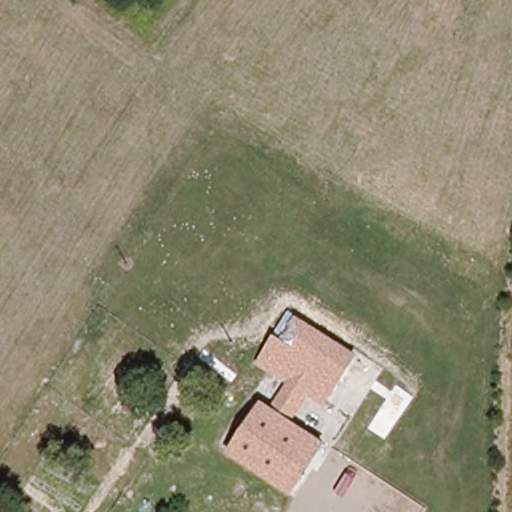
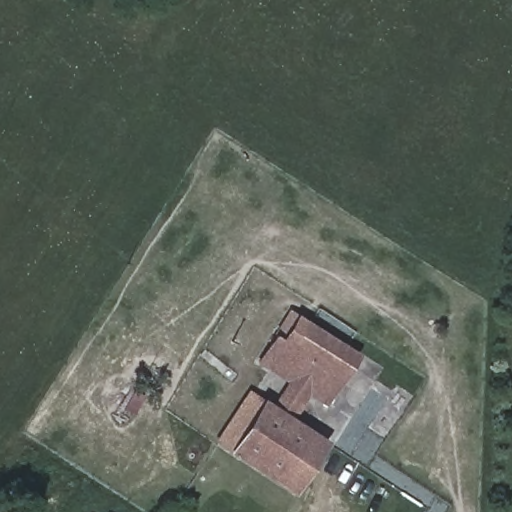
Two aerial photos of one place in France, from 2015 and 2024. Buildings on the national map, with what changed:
unchanged [(258,362),(278,332),(287,337),(312,298),(370,337),(326,405),(258,362)]
unchanged [(263,407),(322,445),(293,489),(236,454),(263,407)]

